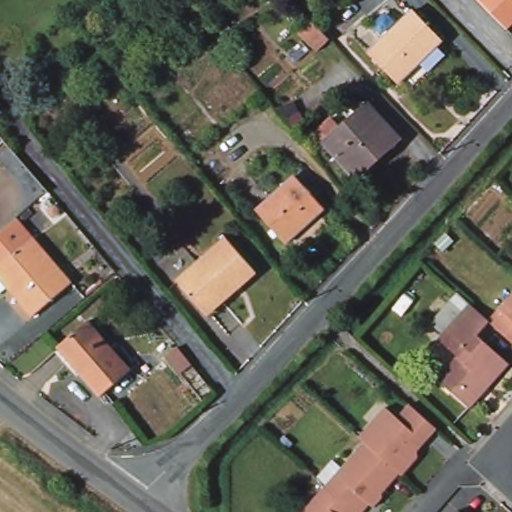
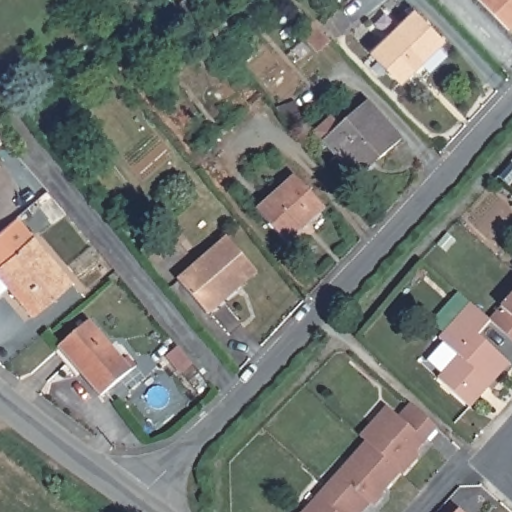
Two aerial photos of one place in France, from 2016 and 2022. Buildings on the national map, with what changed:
unchanged [(504,24),(481,0),(512,0),(512,22),(506,28),(504,24)]
unchanged [(442,40),(396,81),(366,50),(412,9),(442,40)]
unchanged [(404,140),(378,164),(370,155),(351,174),(322,144),(369,100),(404,140)]
unchanged [(324,213),(287,245),(254,209),(292,178),(324,213)]
unchanged [(21,219),(75,284),(33,318),(11,290),(0,300),(0,269),(0,238),(21,219)]
unchanged [(257,274),(213,311),(184,277),(228,240),(257,274)]
unchanged [(488,319),(512,295),(512,341),(492,323),(488,319)]
unchanged [(477,338),(507,366),(469,407),(439,378),(457,357),(437,339),(470,303),(488,319),(492,323),(477,338)]
unchanged [(86,323),(130,374),(100,400),(56,347),(86,323)]
unchanged [(369,444),(364,441),(393,409),(405,419),(416,407),(443,432),(419,457),(425,462),(408,479),(403,474),(383,494),(388,499),(384,504),(344,469),(369,444)]
unchanged [(379,509),(373,505),(367,512),(305,512),(327,487),(344,469),(384,504),(379,509)]
unchanged [(462,507),(468,512),(458,512),(462,507)]

